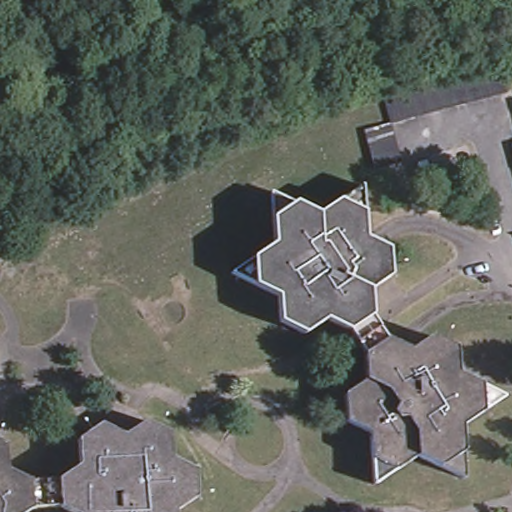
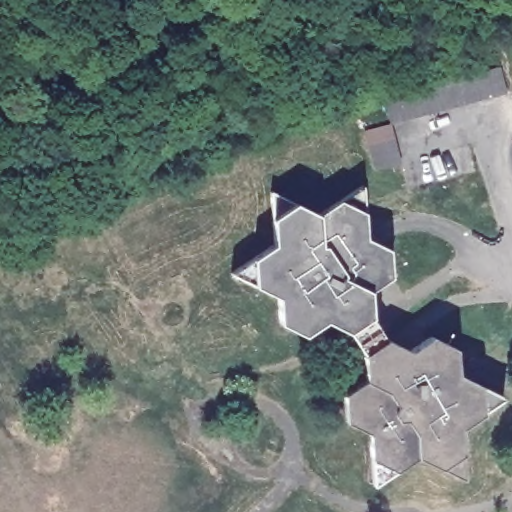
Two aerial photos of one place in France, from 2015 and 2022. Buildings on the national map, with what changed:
unchanged [(418,86),(432,82),(445,79),(460,75),(473,71),(485,69),(497,65),(503,90),(492,94),(480,96),(467,100),(453,103),(440,106),(427,110),(415,113),(404,116),(388,120),(382,96),(397,92),(408,89),(418,86)]
unchanged [(369,141),(365,126),(388,120),(392,136),(395,147),(398,160),(375,166),(372,154),(369,141)]
unchanged [(508,140),(512,139),(512,152),(508,140)]
demolished [(440,150),(454,146),(465,143),(473,171),(460,175),(448,178),(435,181),(427,154),(440,150)]
unchanged [(427,335),(452,347),(454,374),(499,397),(463,422),(460,476),(415,453),(372,482),(370,431),(346,418),(343,391),(365,377),(362,350),(344,328),(323,317),(300,330),(277,318),(275,292),(230,268),(272,239),(268,191),(310,211),(355,183),(360,236),(384,247),(388,275),(365,288),(367,312),(387,336),(410,347),(427,335)]
demolished [(5,472),(30,483),(55,479),(78,465),(77,443),(100,425),(122,437),(145,424),(170,435),(173,460),(193,471),(198,498),(177,512),(73,512),(60,506),(34,509),(30,512),(0,512),(0,446),(3,447),(5,472)]

